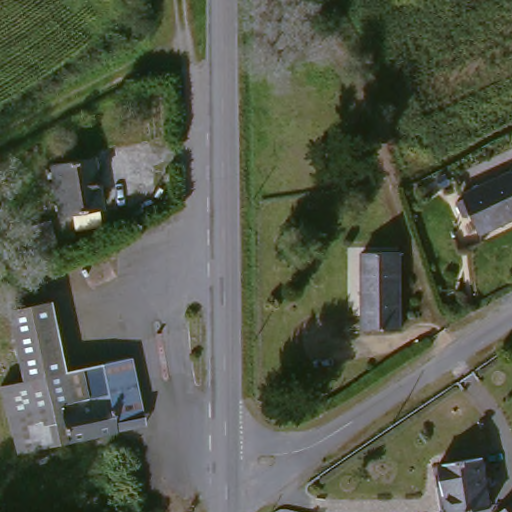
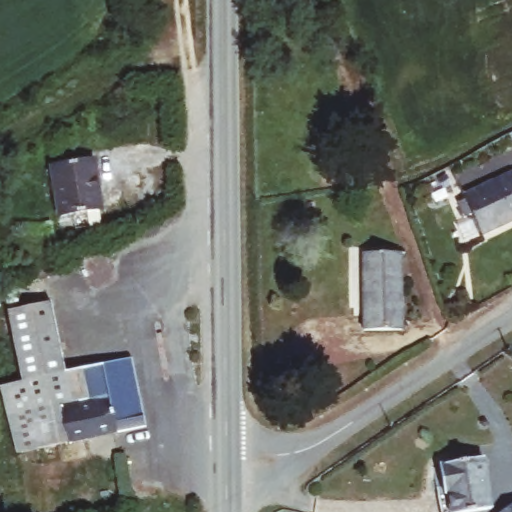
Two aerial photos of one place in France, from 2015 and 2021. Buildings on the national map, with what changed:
unchanged [(337,172),(319,174),(316,153),(334,151),(337,172)]
unchanged [(91,157),(99,207),(56,214),(48,164),(91,157)]
unchanged [(461,194),(512,171),(512,218),(479,233),(469,213),(461,216),(455,202),(463,198),(461,194)]
unchanged [(48,219),(54,244),(20,254),(13,229),(48,219)]
unchanged [(398,256),(399,334),(361,334),(361,256),(398,256)]
unchanged [(0,295),(0,292),(8,290),(13,312),(46,305),(61,376),(128,361),(143,429),(113,435),(113,436),(64,446),(13,456),(0,405),(0,389),(18,385),(4,314),(0,295)]
unchanged [(488,512),(447,512),(444,497),(442,498),(436,469),(481,461),(488,512)]
unchanged [(512,507),(512,512),(504,512),(512,507)]

